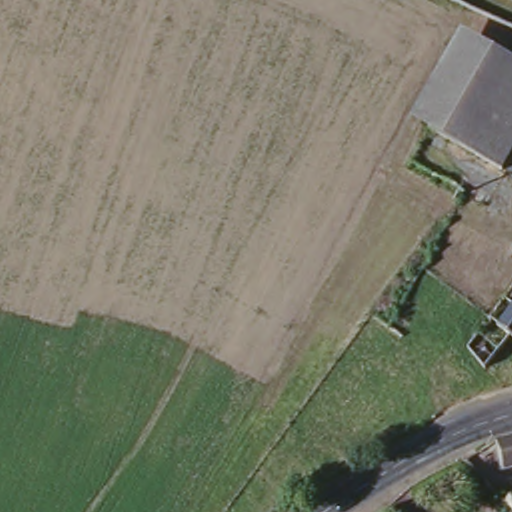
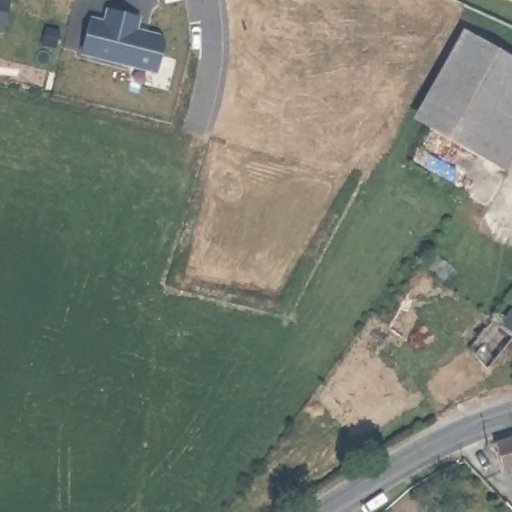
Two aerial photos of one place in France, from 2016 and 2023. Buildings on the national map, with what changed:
new [(3,32),(0,31),(0,0),(11,0),(3,32)]
new [(103,20),(106,8),(142,17),(140,29),(160,34),(165,45),(157,74),(81,55),(89,17),(103,20)]
unchanged [(469,36),(512,59),(512,155),(504,169),(485,157),(421,122),(469,36)]
unchanged [(512,341),(491,325),(512,295),(512,341)]
unchanged [(512,346),(488,375),(471,352),(491,325),(512,341),(512,346)]
unchanged [(502,447),(512,445),(512,476),(510,477),(502,447)]
unchanged [(512,491),(512,512),(502,501),(512,491)]

